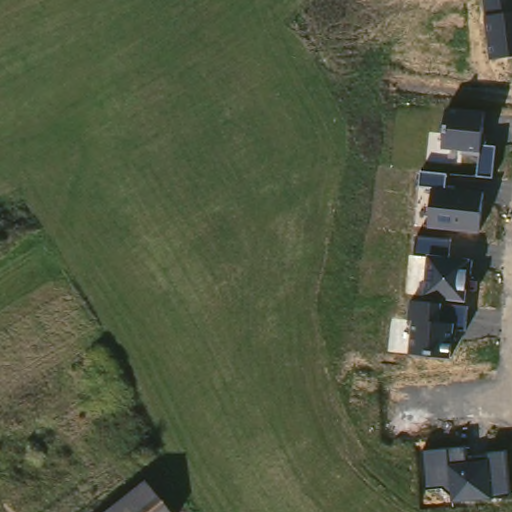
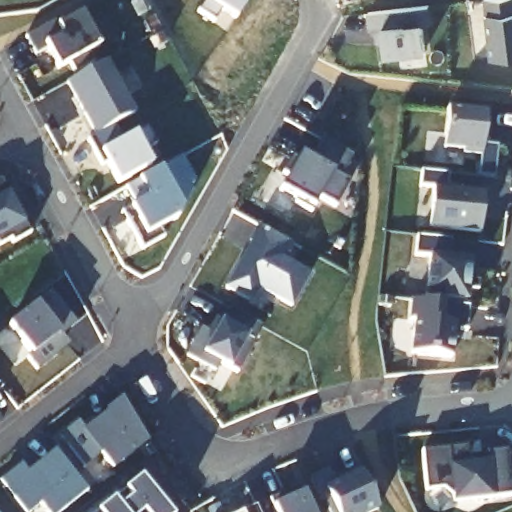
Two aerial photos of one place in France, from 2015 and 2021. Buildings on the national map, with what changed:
new [(222,10),(214,22),(197,11),(204,0),(247,0),(235,19),(222,10)]
unchanged [(485,0),(512,0),(512,56),(493,60),(485,0)]
new [(383,30),(372,32),(370,14),(430,7),(431,24),(423,25),(425,50),(386,55),(383,30)]
new [(55,22),(60,25),(81,15),(97,48),(88,54),(93,64),(74,73),(70,61),(57,67),(46,49),(35,55),(26,38),(55,22)]
new [(105,163),(101,165),(88,141),(95,137),(66,85),(107,62),(136,117),(115,125),(124,141),(135,135),(146,128),(155,146),(144,152),(151,166),(117,185),(105,163)]
unchanged [(496,179),(478,176),(480,151),(442,147),(447,110),(487,114),(484,145),(497,147),(496,179)]
new [(352,156),(340,179),(348,184),(334,209),(318,199),(313,208),(280,190),(289,176),(284,174),(293,157),(300,157),(301,155),(311,161),(322,141),(352,156)]
new [(124,215),(130,209),(136,206),(126,189),(138,181),(161,170),(180,159),(194,185),(188,188),(192,195),(182,210),(176,221),(158,230),(162,240),(143,249),(124,215)]
unchanged [(481,234),(428,227),(432,187),(420,185),(421,171),(449,174),(448,188),(487,191),(481,234)]
new [(1,180),(29,234),(13,241),(12,238),(0,245),(0,180),(1,180)]
new [(251,244),(250,242),(258,226),(291,245),(283,259),(310,275),(291,308),(259,290),(251,302),(226,287),(251,244)]
unchanged [(454,325),(451,357),(410,355),(415,300),(426,301),(430,255),(415,253),(416,237),(451,240),(450,255),(473,258),(470,303),(469,324),(454,325)]
new [(50,294),(75,327),(62,336),(69,347),(37,371),(26,358),(30,355),(9,326),(36,303),(50,294)]
new [(229,311),(261,328),(238,372),(232,365),(229,370),(220,365),(215,373),(185,356),(202,328),(209,332),(215,320),(222,323),(229,311)]
new [(2,388),(0,389),(0,386),(2,388)]
new [(61,437),(78,423),(84,431),(108,413),(106,410),(122,398),(149,440),(113,468),(101,453),(85,466),(61,437)]
unchanged [(511,495),(453,500),(453,495),(441,487),(428,488),(426,451),(469,448),(469,456),(507,452),(511,495)]
new [(60,512),(46,512),(41,505),(32,512),(25,512),(1,480),(21,464),(28,473),(55,452),(86,493),(60,512)]
new [(322,490),(316,493),(310,477),(328,469),(333,479),(359,466),(379,511),(376,512),(330,512),(322,490)]
unchanged [(181,512),(106,512),(152,475),(181,512)]
new [(272,507),(274,506),(270,500),(299,487),(305,492),(313,512),(274,512),(272,507)]

